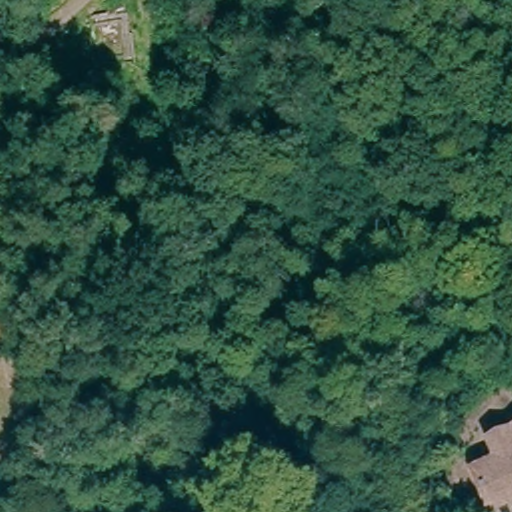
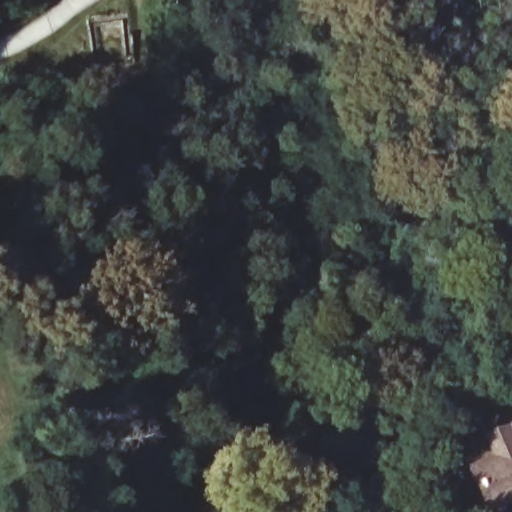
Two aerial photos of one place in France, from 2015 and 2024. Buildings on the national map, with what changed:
unchanged [(488,511),(471,471),(496,461),(488,442),(505,435),(512,453),(512,501),(488,511)]

